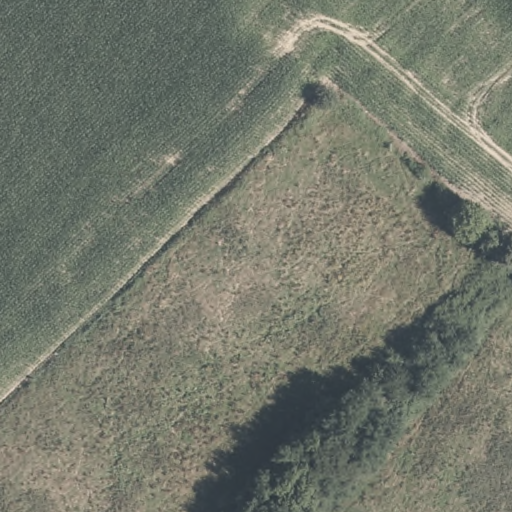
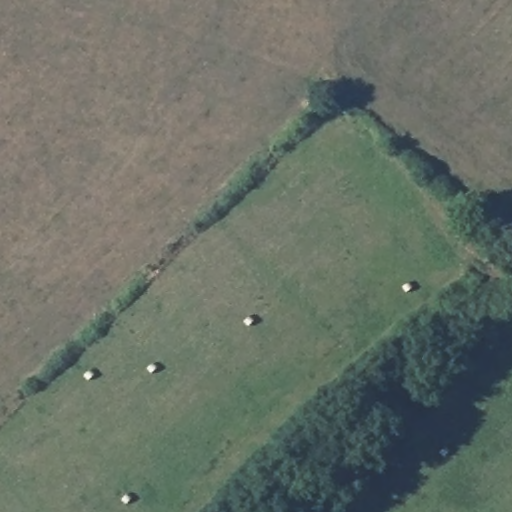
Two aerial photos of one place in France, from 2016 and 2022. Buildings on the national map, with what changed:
[]

